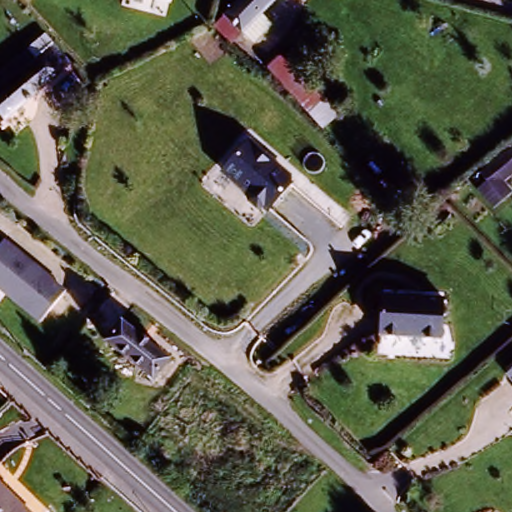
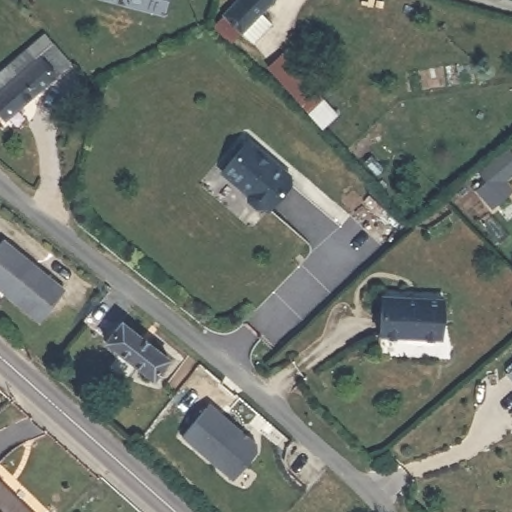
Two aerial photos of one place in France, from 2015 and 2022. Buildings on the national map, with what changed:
unchanged [(240,26),(222,3),(225,0),(273,0),(261,9),(271,23),(250,39),(240,26)]
unchanged [(19,59),(35,45),(60,74),(45,88),(4,125),(0,121),(0,67),(5,63),(13,71),(22,64),(19,59)]
unchanged [(323,121),(299,96),(270,65),(280,56),(308,87),(333,113),(323,121)]
unchanged [(290,187),(265,210),(261,207),(255,207),(247,198),(247,193),(223,167),(253,139),(262,148),(270,156),(287,174),(290,187)]
unchanged [(7,232),(72,292),(44,319),(0,286),(0,241),(7,232)]
unchanged [(443,297),(442,334),(380,333),(382,294),(443,297)]
unchanged [(112,346),(105,339),(120,323),(168,365),(155,382),(143,373),(112,346)]
unchanged [(512,369),(512,377),(508,372),(512,369)]
new [(257,444),(257,452),(233,479),(187,438),(215,406),(257,444)]
unchanged [(22,512),(0,512),(0,490),(22,512)]

